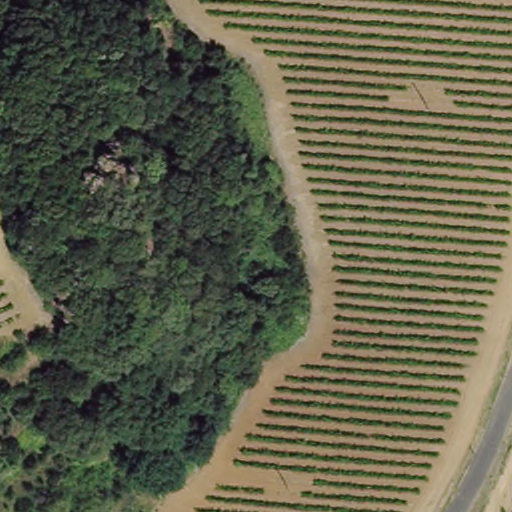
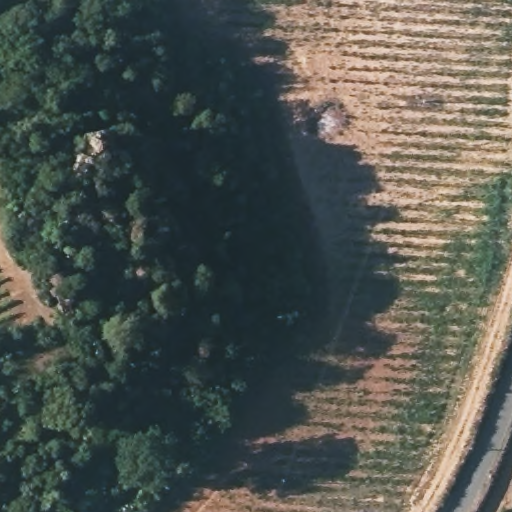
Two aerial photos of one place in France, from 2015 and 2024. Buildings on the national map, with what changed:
[]

